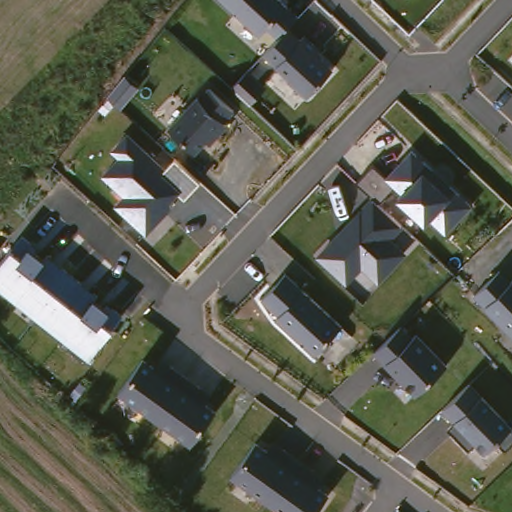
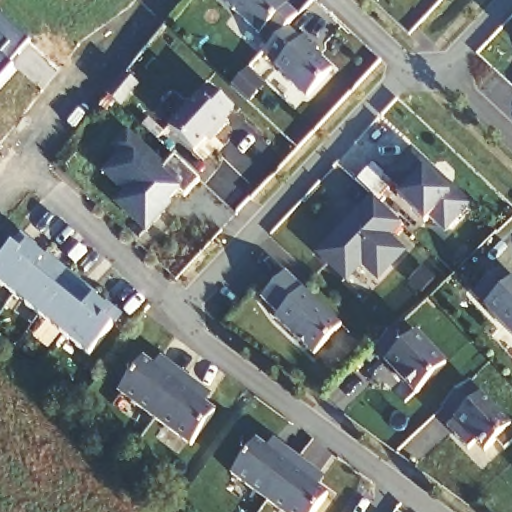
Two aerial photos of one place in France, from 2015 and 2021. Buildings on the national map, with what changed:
unchanged [(296,18),(287,29),(329,70),(305,96),(262,58),(278,40),(267,31),(259,39),(220,0),(276,0),(296,18)]
new [(0,77),(0,14),(28,40),(17,52),(9,62),(11,65),(0,77)]
unchanged [(250,75),(261,85),(261,96),(251,107),(234,91),(250,75)]
unchanged [(195,99),(198,101),(209,91),(232,110),(221,121),(225,126),(210,144),(205,141),(194,152),(169,127),(195,99)]
unchanged [(173,159),(199,181),(186,197),(179,192),(169,202),(174,207),(147,235),(114,207),(125,197),(100,177),(117,159),(110,151),(125,134),(163,169),(173,159)]
unchanged [(315,257),(371,197),(356,182),(371,167),(387,177),(410,152),(473,206),(447,236),(429,220),(423,225),(395,200),(399,194),(393,189),(378,206),(405,231),(393,243),(407,255),(380,281),(364,270),(345,282),(315,257)]
unchanged [(0,261),(11,247),(20,235),(37,248),(34,252),(45,260),(49,258),(98,297),(94,299),(104,307),(107,303),(122,317),(111,327),(114,329),(89,356),(0,286),(0,261)]
unchanged [(472,295),(497,272),(509,283),(512,280),(512,335),(472,295)]
unchanged [(275,320),(277,315),(261,299),(288,276),(340,327),(311,354),(275,320)]
unchanged [(385,365),(375,353),(402,327),(413,338),(419,335),(445,364),(411,389),(385,365)]
unchanged [(118,396),(145,363),(154,368),(160,362),(214,397),(205,407),(215,413),(189,447),(118,396)]
unchanged [(512,424),(507,431),(512,435),(512,438),(502,445),(495,438),(484,449),(478,442),(470,450),(447,430),(453,424),(441,413),(470,386),(512,424)]
unchanged [(256,444),(270,452),(277,445),(326,482),(320,491),(327,496),(314,512),(282,512),(231,475),(256,444)]

